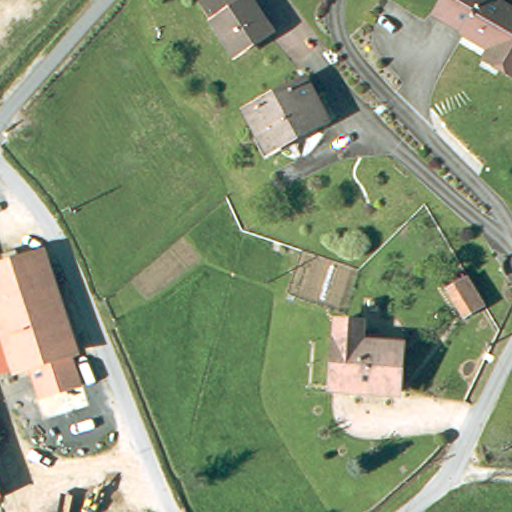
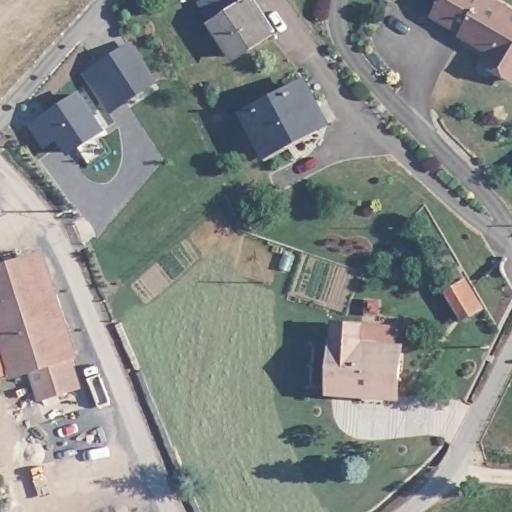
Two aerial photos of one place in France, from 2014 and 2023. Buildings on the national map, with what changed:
unchanged [(207,5),(221,0),(255,0),(258,7),(267,4),(278,44),(271,46),(226,62),(207,5)]
unchanged [(494,56),(442,21),(455,0),(495,0),(512,10),(512,78),(504,73),(490,64),(494,56)]
new [(160,81),(109,113),(83,70),(133,38),(160,81)]
unchanged [(324,130),(264,152),(247,112),(310,90),(324,130)]
new [(72,92),(97,127),(64,150),(40,114),(72,92)]
unchanged [(42,294),(49,292),(69,359),(62,361),(67,379),(71,391),(34,402),(30,390),(25,372),(6,378),(0,380),(0,276),(34,266),(42,294)]
unchanged [(479,316),(461,328),(444,300),(462,290),(479,316)]
unchanged [(393,401),(327,396),(330,350),(332,330),(357,331),(356,352),(396,355),(393,401)]

